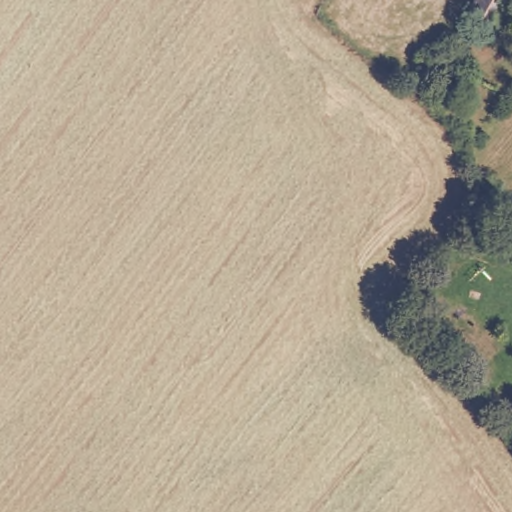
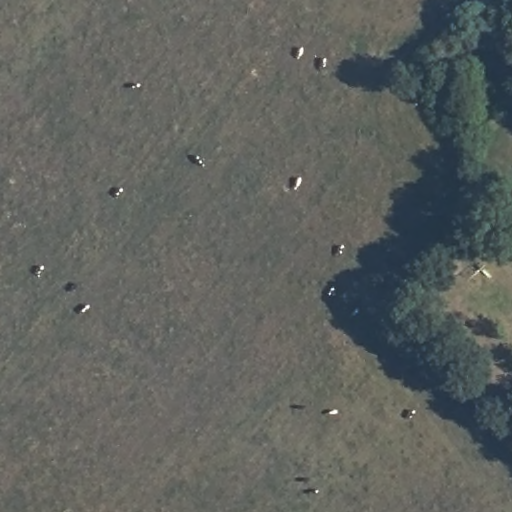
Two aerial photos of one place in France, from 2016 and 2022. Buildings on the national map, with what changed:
unchanged [(482,37),(487,27),(467,14),(474,2),(476,0),(509,0),(499,18),(487,38),(482,37)]
unchanged [(469,71),(496,84),(479,116),(470,114),(463,123),(443,111),(450,98),(469,71)]

